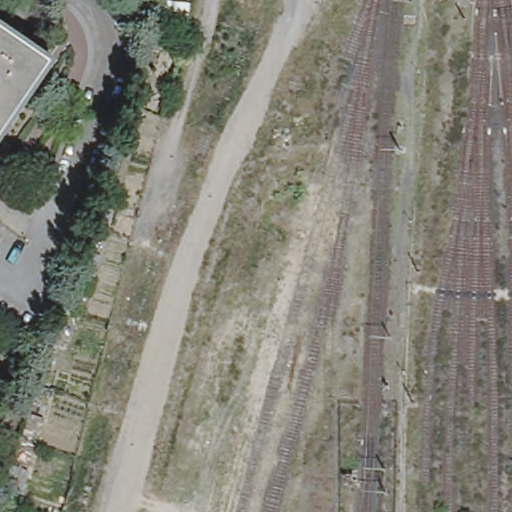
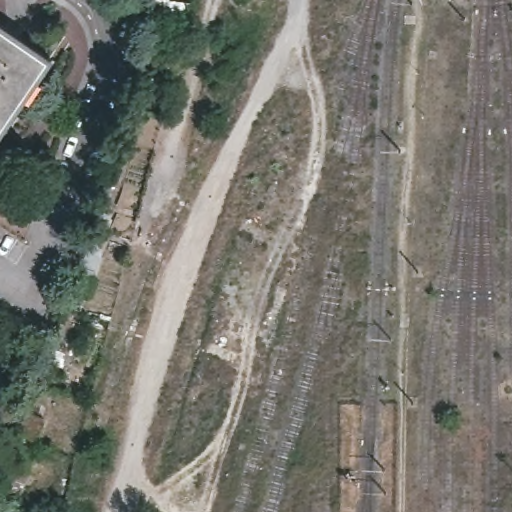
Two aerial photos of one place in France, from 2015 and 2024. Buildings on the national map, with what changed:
unchanged [(51,58),(0,134),(0,24),(51,58)]

